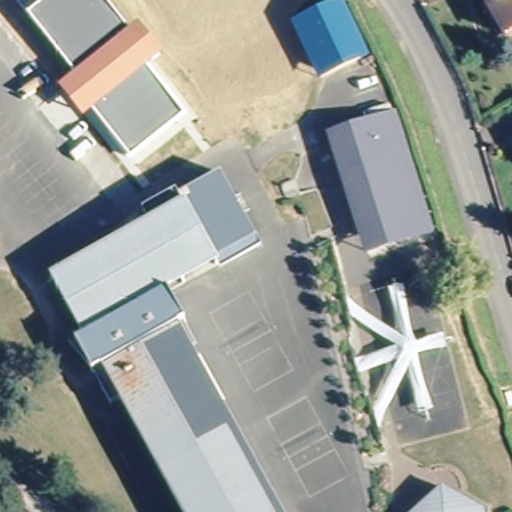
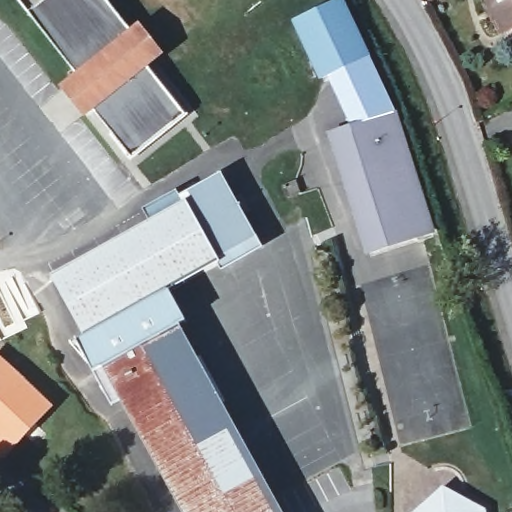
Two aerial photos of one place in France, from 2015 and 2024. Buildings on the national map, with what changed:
unchanged [(138,22),(163,52),(146,67),(185,114),(130,157),(93,111),(84,117),(59,86),(75,74),(28,13),(44,0),(106,0),(130,30),(138,22)]
unchanged [(488,0),(512,0),(512,26),(506,30),(488,0)]
unchanged [(321,79),(317,70),(296,23),(342,2),(363,49),(368,58),(321,79)]
new [(396,111),(394,113),(351,127),(326,77),(368,58),(396,111)]
unchanged [(361,230),(337,152),(331,133),(337,131),(394,113),(431,229),(405,237),(367,249),(361,230)]
unchanged [(83,331),(50,270),(182,199),(177,190),(221,167),(255,232),(229,245),(232,252),(170,286),(186,315),(179,319),(285,512),(182,512),(101,362),(91,367),(74,336),(83,331)]
unchanged [(298,187),(284,192),(280,180),(294,176),(298,187)]
new [(54,406),(3,460),(0,457),(0,356),(54,406)]
unchanged [(512,390),(512,400),(508,401),(504,387),(511,386),(512,390)]
unchanged [(483,512),(414,512),(442,488),(483,512)]

